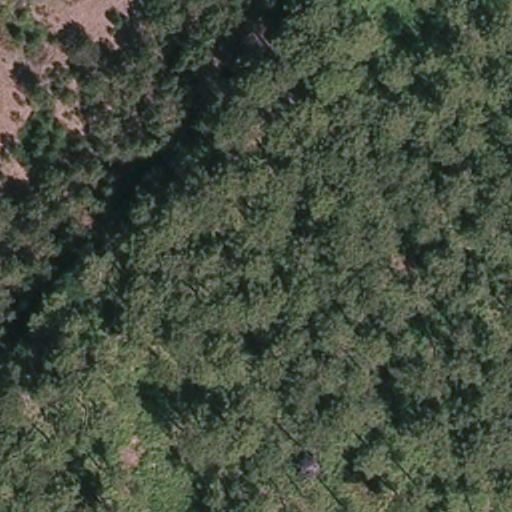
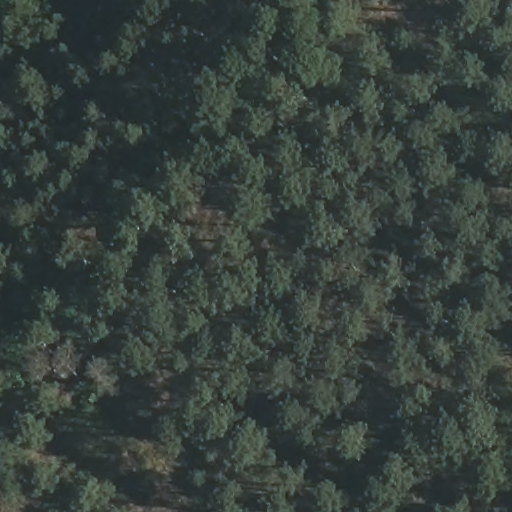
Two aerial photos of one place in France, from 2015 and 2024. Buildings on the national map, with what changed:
[]

